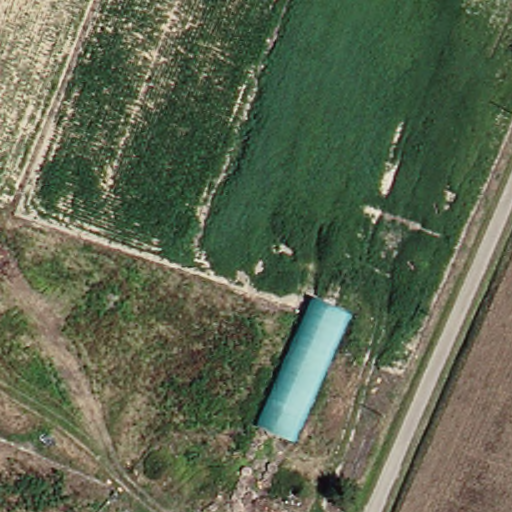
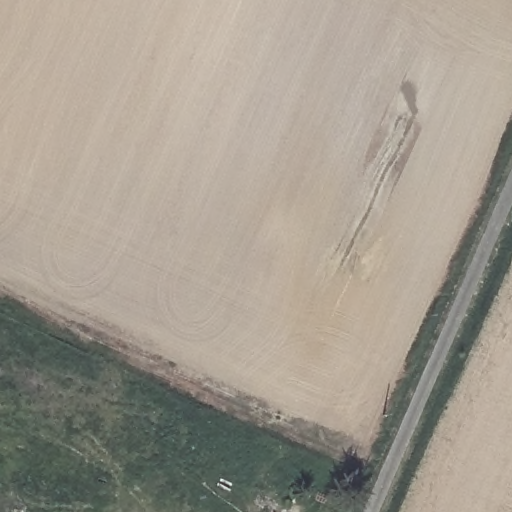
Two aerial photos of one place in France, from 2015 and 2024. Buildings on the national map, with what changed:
demolished [(320,299),(353,313),(298,440),(265,426),(320,299)]

